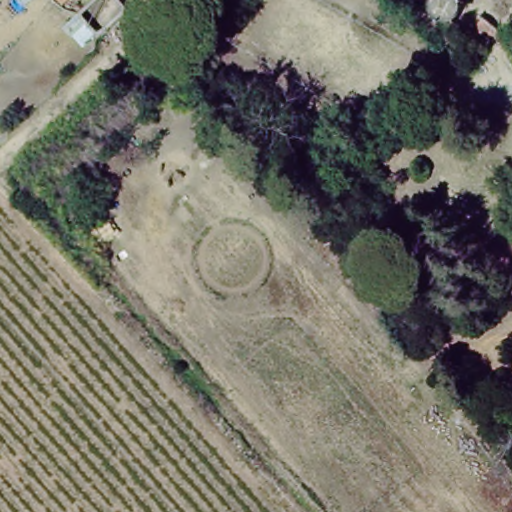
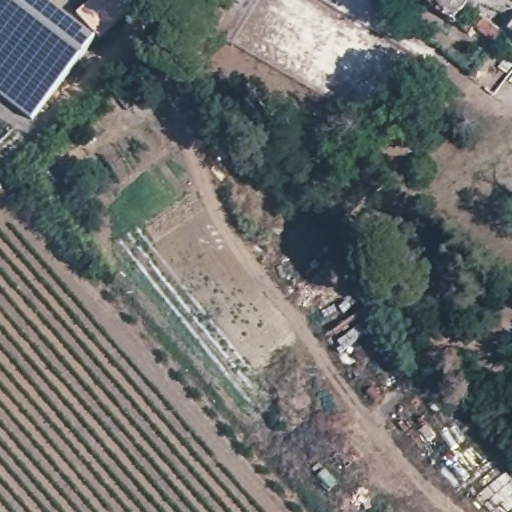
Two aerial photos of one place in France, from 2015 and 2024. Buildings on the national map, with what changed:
new [(33,120),(0,95),(0,0),(47,0),(97,38),(33,120)]
demolished [(418,0),(434,0),(437,2),(421,21),(409,11),(418,0)]
unchanged [(504,33),(497,42),(476,26),(483,17),(479,14),(490,0),(512,0),(512,14),(499,30),(504,33)]
demolished [(450,12),(466,25),(450,44),(433,31),(450,12)]
unchanged [(506,42),(505,34),(508,24),(512,19),(512,53),(511,52),(506,42)]

